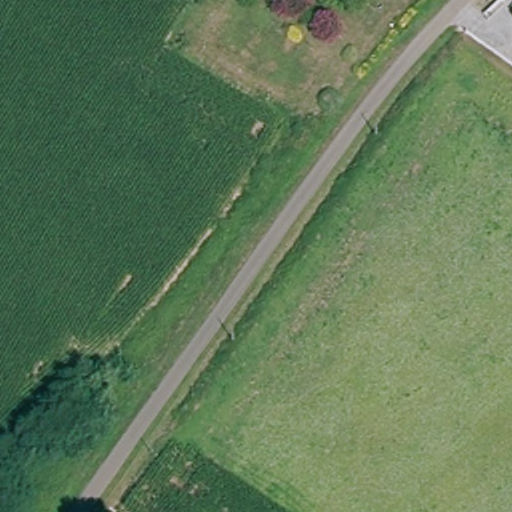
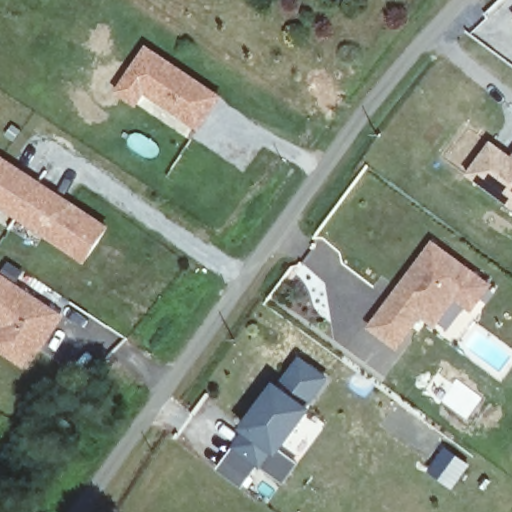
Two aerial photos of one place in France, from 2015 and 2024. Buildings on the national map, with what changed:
new [(225,97),(201,132),(146,95),(137,108),(115,94),(147,45),(225,97)]
new [(492,142),(512,156),(512,205),(470,173),(492,142)]
new [(110,228),(87,265),(0,208),(0,155),(110,228)]
new [(491,285),(473,310),(457,299),(436,326),(421,317),(400,350),(370,326),(432,243),(491,285)]
new [(66,318),(41,354),(37,351),(26,369),(0,352),(0,331),(2,328),(0,327),(0,273),(66,318)]
new [(237,434),(258,405),(266,394),(268,395),(290,365),(316,383),(295,412),(298,415),(269,457),(265,453),(252,470),(250,469),(233,493),(210,477),(240,436),(237,434)]

